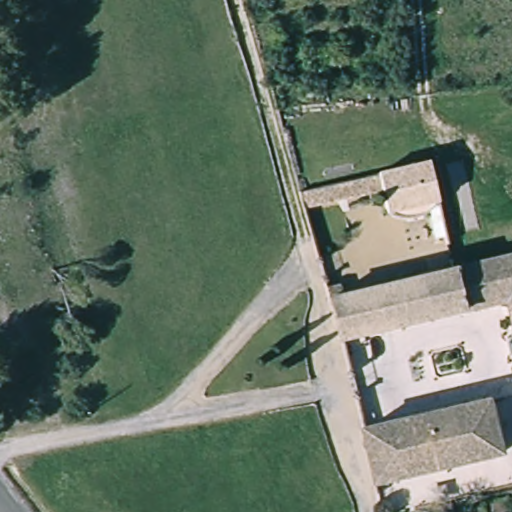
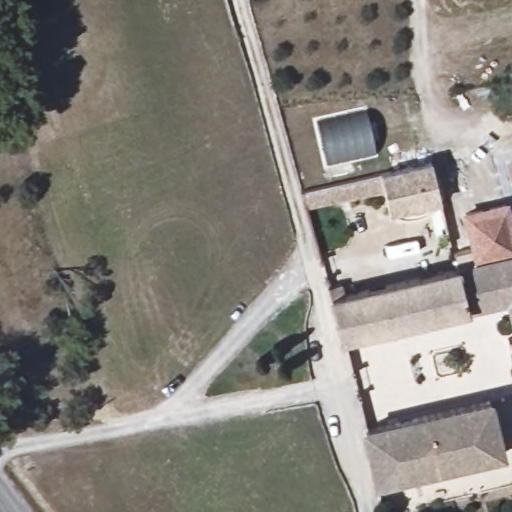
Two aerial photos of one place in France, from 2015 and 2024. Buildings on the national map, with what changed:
new [(327,161),(317,121),(367,109),(376,149),(327,161)]
unchanged [(417,204),(420,214),(404,219),(402,210),(384,213),(378,193),(373,175),(391,169),(426,159),(436,199),(417,204)]
unchanged [(303,196),(373,175),(378,193),(307,212),(303,196)]
new [(461,212),(509,200),(512,214),(512,252),(459,267),(455,252),(471,247),(461,212)]
unchanged [(340,350),(330,308),(327,295),(339,292),(342,302),(453,272),(496,260),(512,255),(512,337),(504,302),(340,350)]
unchanged [(502,343),(512,339),(512,359),(506,361),(502,343)]
unchanged [(363,434),(489,400),(501,453),(371,486),(363,434)]

